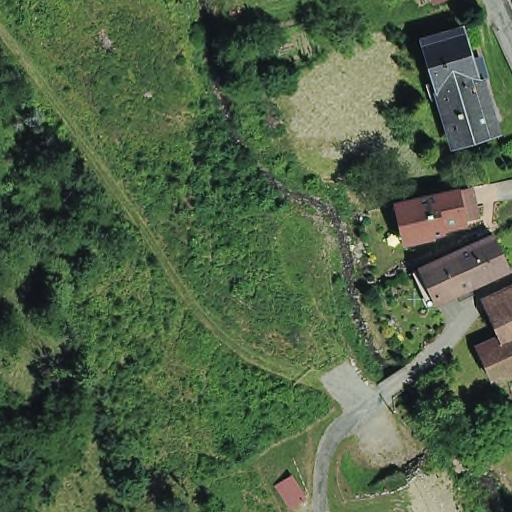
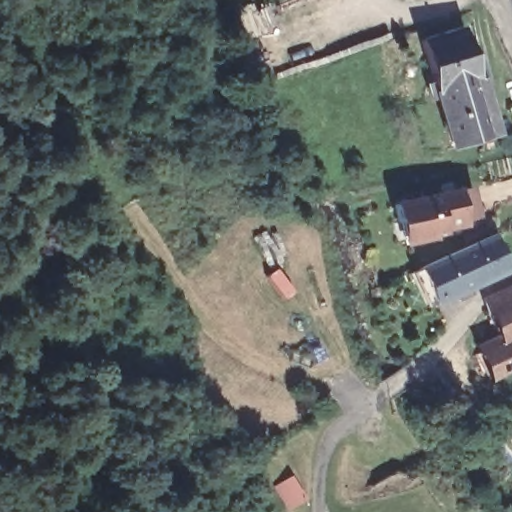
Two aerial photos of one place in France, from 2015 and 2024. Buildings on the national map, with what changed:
unchanged [(428,4),(427,0),(437,0),(428,4)]
unchanged [(422,100),(420,93),(425,91),(410,42),(450,30),(462,67),(470,64),(475,81),(467,84),(483,135),(443,147),(427,98),(422,100)]
unchanged [(448,229),(448,231),(438,234),(427,237),(427,239),(403,245),(398,224),(392,225),(388,208),(462,191),(469,219),(456,223),(457,227),(448,229)]
unchanged [(452,302),(450,296),(445,298),(429,305),(414,271),(430,264),(487,238),(502,271),(463,289),(466,295),(452,302)]
unchanged [(502,349),(486,314),(512,302),(512,346),(503,351),(502,349)]
unchanged [(512,375),(490,385),(478,360),(502,349),(503,351),(512,346),(512,375)]
unchanged [(290,481),(303,502),(290,511),(276,489),(290,481)]

